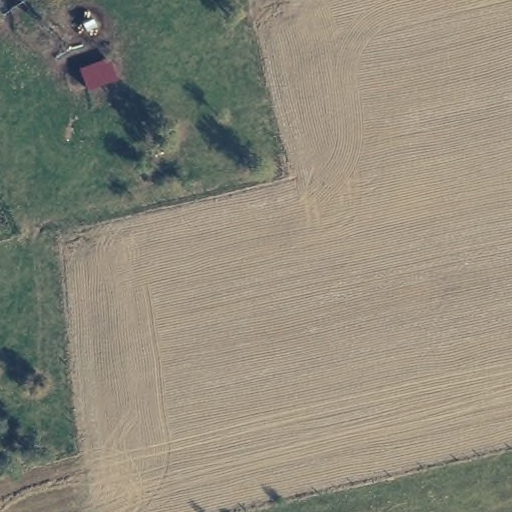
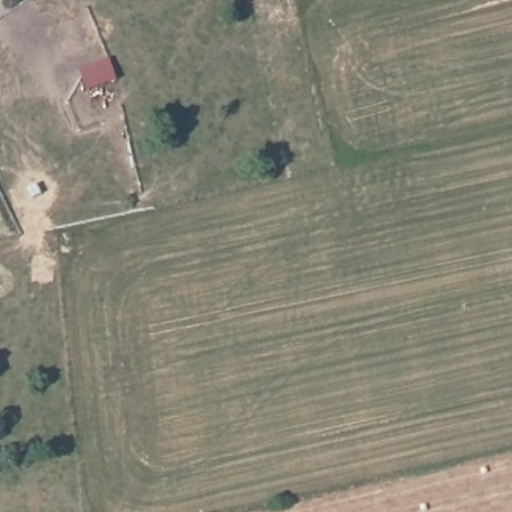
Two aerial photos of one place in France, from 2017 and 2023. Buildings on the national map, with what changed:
unchanged [(76,65),(114,56),(120,80),(81,89),(76,65)]

